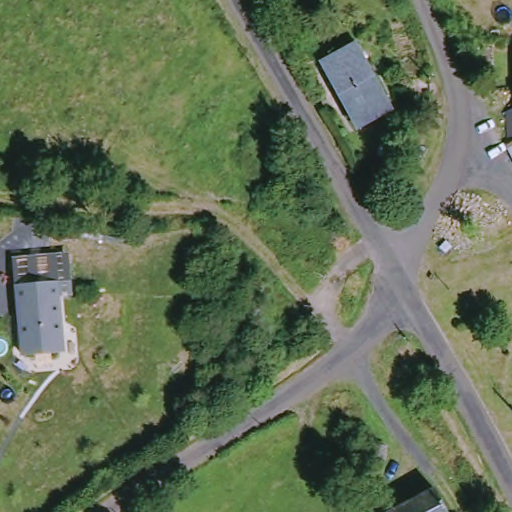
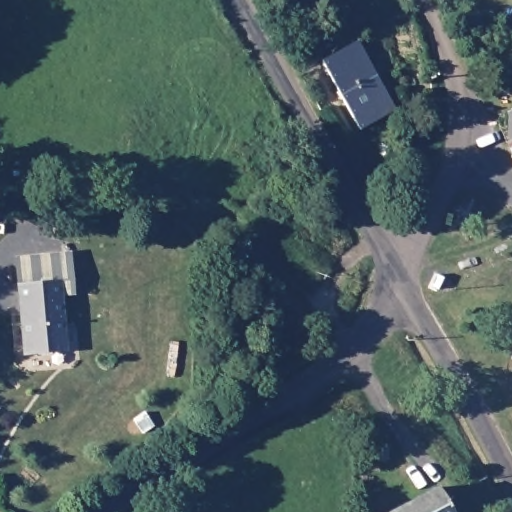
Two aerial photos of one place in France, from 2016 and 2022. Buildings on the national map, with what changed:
unchanged [(362,127),(326,62),(358,44),(394,110),(362,127)]
unchanged [(25,352),(20,282),(60,279),(65,350),(25,352)]
unchanged [(384,443),(386,460),(370,461),(369,445),(384,443)]
unchanged [(438,491),(449,512),(400,512),(438,491)]

